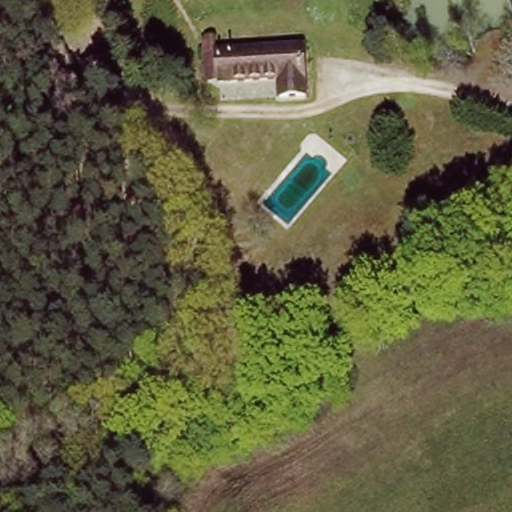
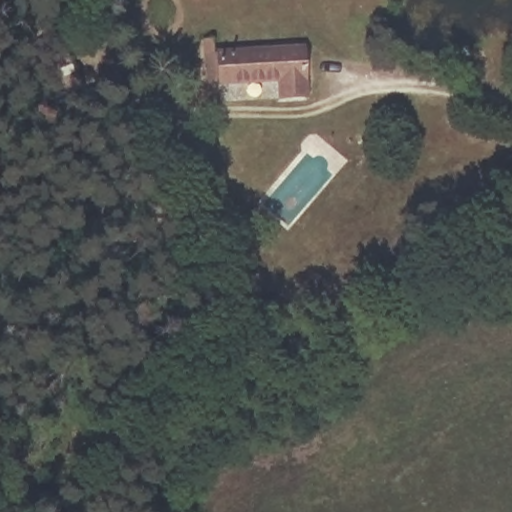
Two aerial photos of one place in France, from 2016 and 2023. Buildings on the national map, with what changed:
unchanged [(206,77),(205,57),(307,50),(311,96),(285,99),(282,80),(220,85),(207,85),(206,77)]
unchanged [(64,54),(85,97),(52,112),(32,70),(64,54)]

